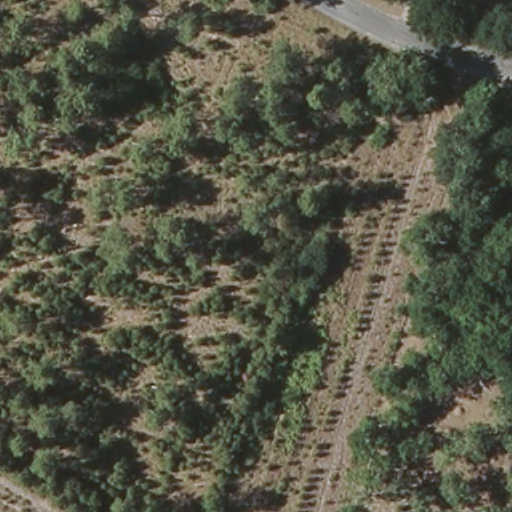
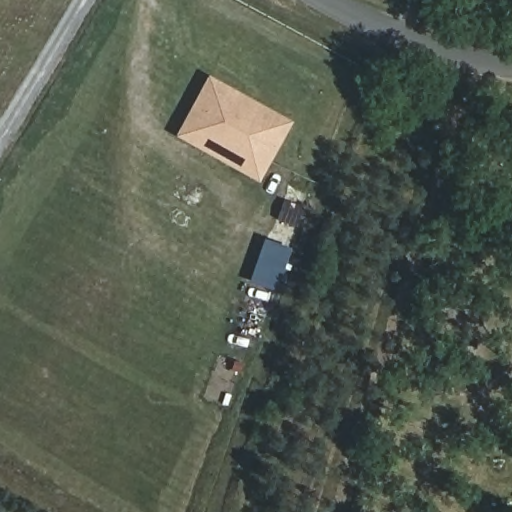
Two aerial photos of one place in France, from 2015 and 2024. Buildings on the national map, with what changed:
new [(285,128),(212,87),(199,110),(217,121),(206,140),(261,171),(257,178),(179,134),(210,78),(288,122),(285,128)]
new [(261,171),(206,140),(217,121),(199,110),(212,87),(285,128),(261,171)]

